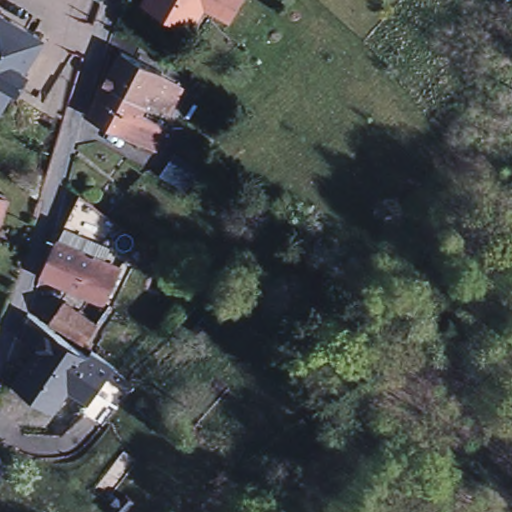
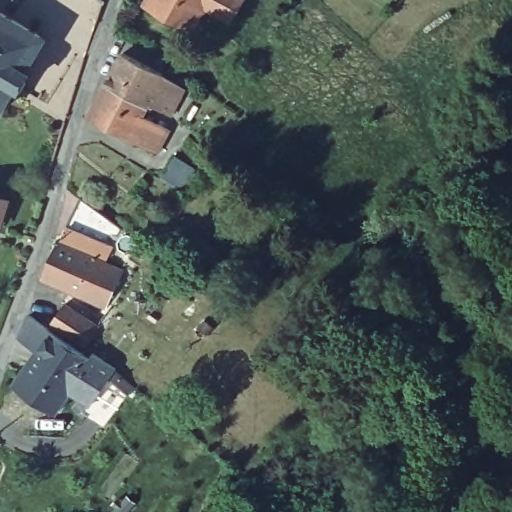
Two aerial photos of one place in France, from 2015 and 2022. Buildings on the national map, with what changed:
unchanged [(198,10),(186,32),(137,5),(140,0),(239,0),(225,25),(198,10)]
unchanged [(8,7),(54,36),(33,69),(38,71),(28,87),(24,85),(8,112),(0,107),(0,7),(5,10),(8,7)]
unchanged [(162,111),(142,102),(139,109),(98,87),(115,52),(156,71),(156,72),(178,85),(162,111)]
unchanged [(151,151),(124,137),(84,117),(98,87),(139,109),(136,115),(162,128),(151,151)]
unchanged [(192,171),(177,192),(154,176),(169,155),(192,171)]
unchanged [(2,220),(0,220),(0,192),(10,195),(2,220)]
unchanged [(118,261),(131,266),(123,285),(113,281),(103,303),(80,293),(38,276),(52,241),(71,196),(111,230),(99,260),(116,267),(118,261)]
unchanged [(94,325),(84,345),(47,326),(57,306),(94,325)]
unchanged [(65,390),(49,413),(8,385),(31,350),(12,337),(25,316),(48,330),(89,355),(65,390)]
unchanged [(93,349),(113,365),(86,403),(65,390),(89,355),(93,349)]

